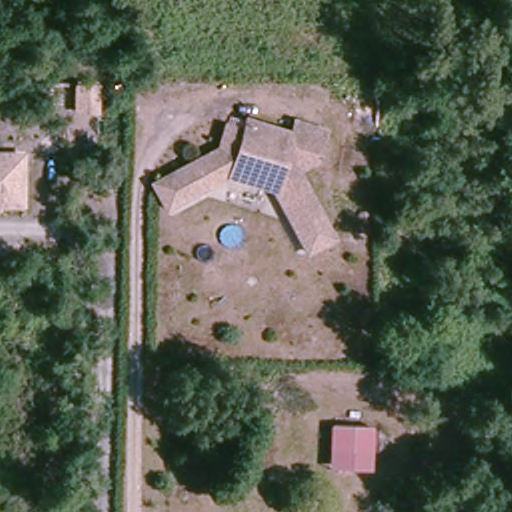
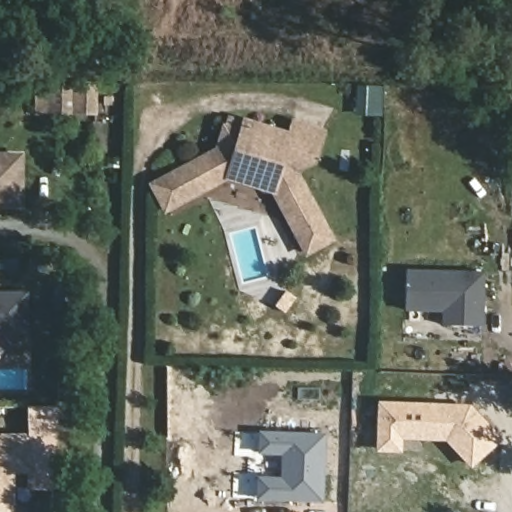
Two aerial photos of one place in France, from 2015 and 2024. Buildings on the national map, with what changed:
new [(97,94),(104,94),(103,108),(98,112),(97,116),(49,116),(48,85),(98,86),(97,94)]
unchanged [(314,129),(308,157),(291,169),(332,235),(308,249),(268,188),(221,182),(163,222),(146,196),(208,156),(218,133),(234,138),(236,125),(280,136),(284,122),(314,129)]
unchanged [(23,203),(0,206),(0,154),(18,152),(23,203)]
new [(406,311),(406,268),(485,272),(483,326),(441,325),(442,312),(406,311)]
new [(27,331),(0,333),(0,291),(28,290),(27,331)]
new [(403,439),(402,453),(376,452),(378,401),(471,404),(504,438),(471,468),(445,441),(403,439)]
new [(280,455),(257,454),(258,429),(324,432),(323,503),(255,500),(256,476),(281,476),(280,455)]
unchanged [(365,456),(329,456),(331,429),(365,429),(365,456)]
new [(30,475),(14,475),(14,503),(0,504),(0,434),(29,433),(30,475)]

